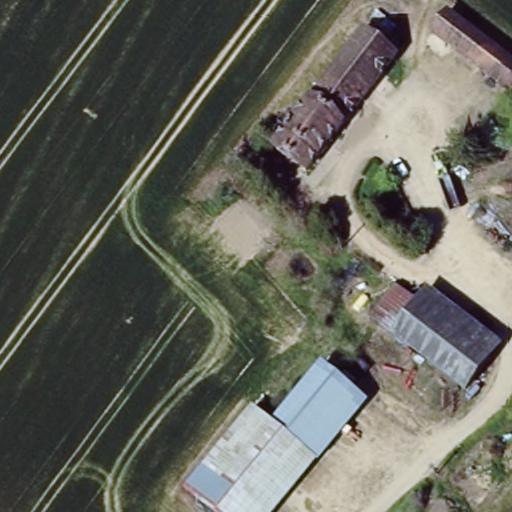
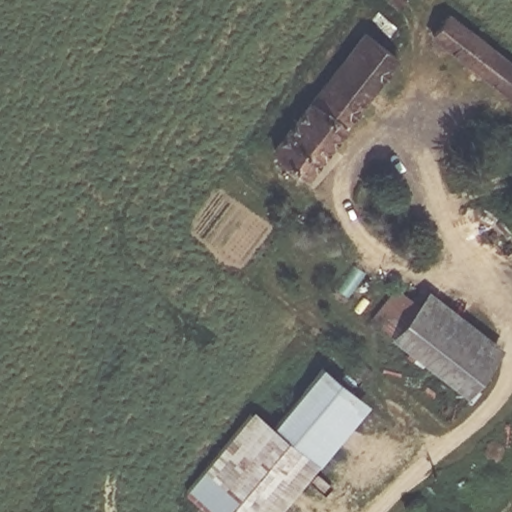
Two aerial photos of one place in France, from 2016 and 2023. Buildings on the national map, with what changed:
unchanged [(512,97),(429,36),(443,18),(512,70),(512,97)]
unchanged [(394,58),(307,177),(271,154),(357,33),(394,58)]
unchanged [(492,360),(469,397),(394,343),(418,308),(492,360)]
unchanged [(317,460),(302,448),(268,423),(314,362),(347,387),(361,398),(317,460)]
unchanged [(281,512),(207,512),(198,505),(184,496),(248,409),(261,418),(268,423),(302,448),(317,460),(281,512)]

